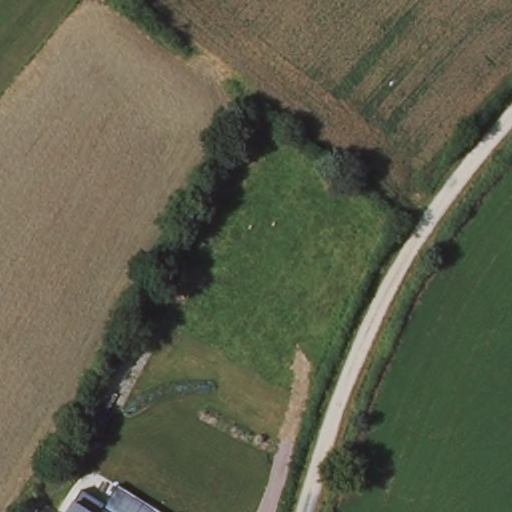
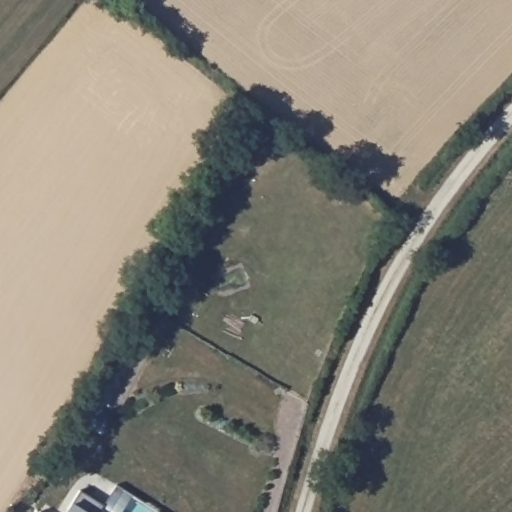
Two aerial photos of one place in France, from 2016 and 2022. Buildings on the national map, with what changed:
unchanged [(80,490),(104,505),(100,512),(63,512),(70,502),(80,490)]
unchanged [(45,512),(38,512),(40,508),(45,512)]

